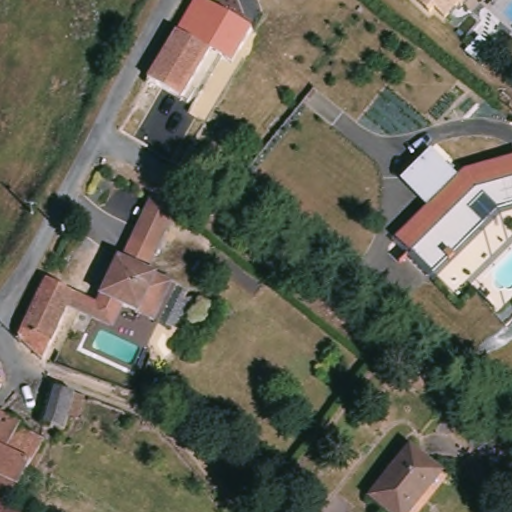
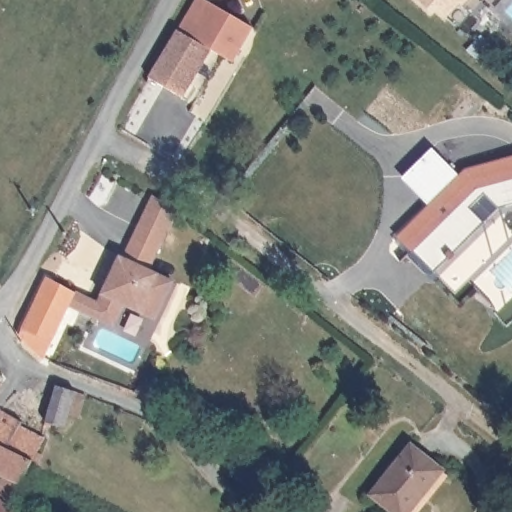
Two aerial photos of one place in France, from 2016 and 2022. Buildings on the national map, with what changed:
unchanged [(179,29),(196,0),(201,0),(251,29),(230,62),(219,55),(199,92),(191,87),(213,50),(179,29)]
unchanged [(459,7),(446,19),(437,10),(431,15),(418,0),(469,0),(462,8),(459,7)]
unchanged [(178,32),(179,29),(213,50),(191,87),(184,99),(181,97),(151,77),(178,32)]
unchanged [(403,175),(432,147),(458,175),(465,168),(512,156),(512,204),(498,208),(483,192),(469,206),(483,222),(451,252),(453,254),(448,259),(446,257),(432,271),(409,247),(396,233),(399,231),(429,202),(403,175)]
unchanged [(120,313),(114,328),(71,312),(57,340),(45,360),(19,337),(48,278),(79,293),(99,303),(102,297),(119,256),(124,257),(152,195),(180,208),(153,271),(164,276),(161,282),(176,286),(157,322),(120,313)]
unchanged [(3,388),(0,391),(0,384),(3,388)]
unchanged [(0,411),(26,425),(25,427),(44,440),(31,463),(19,487),(11,507),(18,512),(0,512),(0,411)]
unchanged [(448,472),(413,512),(388,512),(369,497),(411,443),(448,472)]

